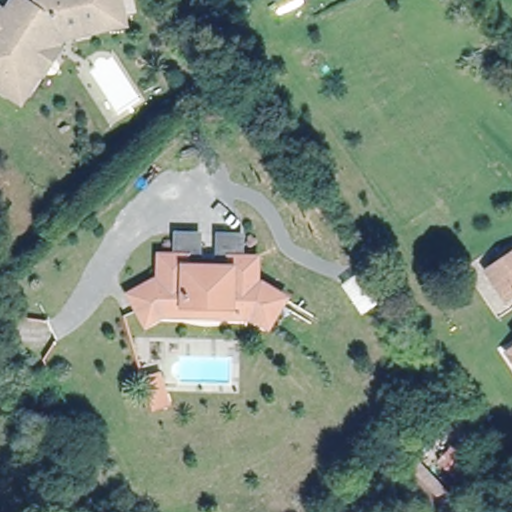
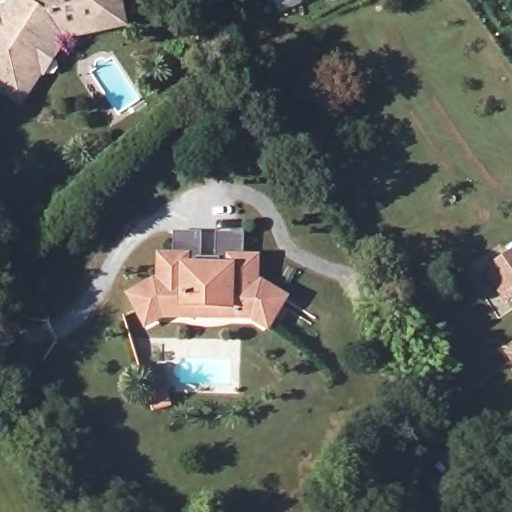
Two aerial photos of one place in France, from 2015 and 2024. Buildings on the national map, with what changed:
unchanged [(0,85),(0,13),(6,4),(7,5),(21,14),(30,0),(36,0),(42,4),(47,0),(126,0),(131,21),(96,29),(93,34),(62,39),(42,69),(47,73),(33,94),(27,103),(16,95),(0,85)]
unchanged [(136,295),(166,279),(166,257),(182,258),(183,236),(204,236),(203,268),(206,268),(207,263),(221,264),(221,269),(224,269),(224,237),(245,238),(245,259),(261,259),(261,282),(289,299),(272,327),(256,316),(169,314),(151,324),(136,295)]
unchanged [(507,299),(487,269),(512,253),(512,295),(507,299)]
unchanged [(507,353),(512,349),(512,360),(507,353)]
unchanged [(172,404),(152,411),(141,378),(161,369),(172,404)]
unchanged [(452,477),(437,461),(457,444),(471,459),(452,477)]

